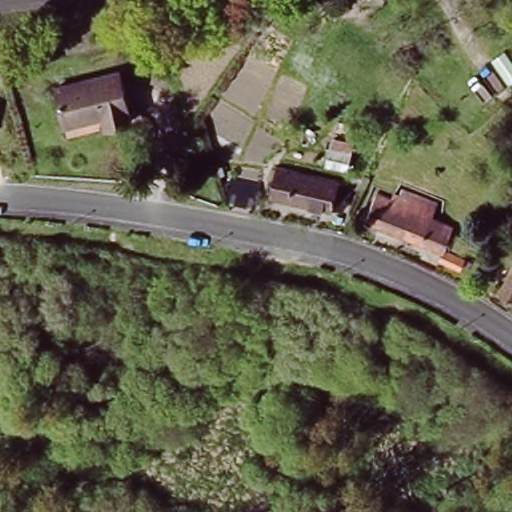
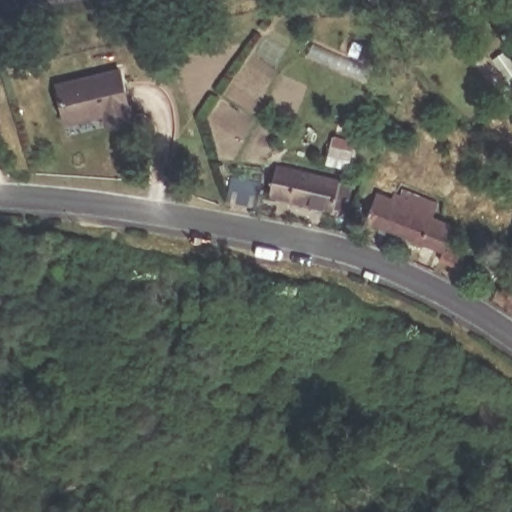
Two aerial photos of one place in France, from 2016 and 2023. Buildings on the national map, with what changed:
unchanged [(125,83),(134,118),(134,120),(107,126),(105,115),(69,123),(60,85),(123,71),(125,83)]
unchanged [(358,145),(354,160),(333,154),(337,139),(358,145)]
unchanged [(356,175),(355,181),(352,195),(348,203),(339,200),(338,202),(275,187),(283,158),(356,175)]
unchanged [(267,176),(262,198),(232,191),(237,169),(267,176)]
unchanged [(397,191),(400,185),(405,188),(408,182),(445,197),(439,211),(460,219),(450,243),(470,253),(465,263),(444,252),(447,245),(372,214),(382,186),(397,191)]
unchanged [(497,295),(512,268),(512,306),(497,295)]

